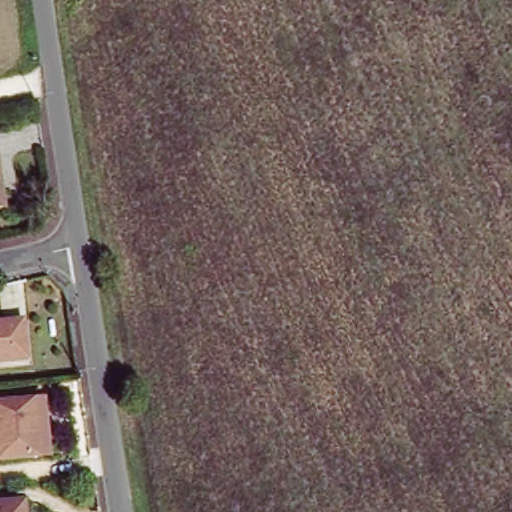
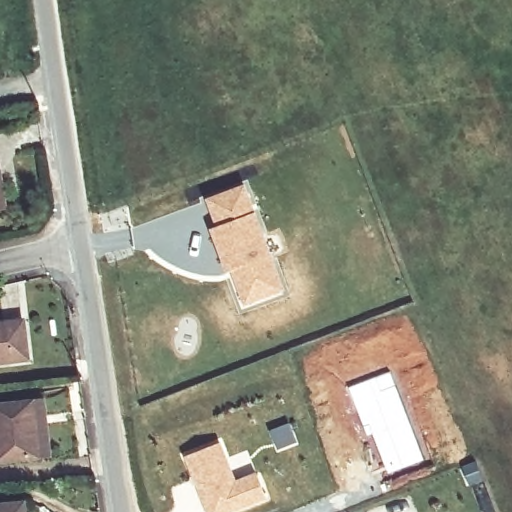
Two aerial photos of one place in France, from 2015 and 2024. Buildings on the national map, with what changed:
unchanged [(12,202),(0,204),(0,130),(1,130),(12,202)]
new [(243,182),(286,292),(241,310),(207,228),(213,226),(203,198),(243,182)]
unchanged [(0,324),(32,320),(36,358),(0,362),(0,324)]
new [(389,370),(424,460),(387,474),(370,434),(366,436),(347,386),(389,370)]
unchanged [(42,399),(48,454),(38,455),(0,460),(0,404),(32,400),(42,399)]
new [(289,421),(297,443),(276,451),(267,429),(289,421)]
new [(226,512),(210,512),(185,455),(219,442),(225,459),(247,450),(266,496),(226,512)]
unchanged [(35,512),(0,512),(0,500),(33,497),(35,512)]

